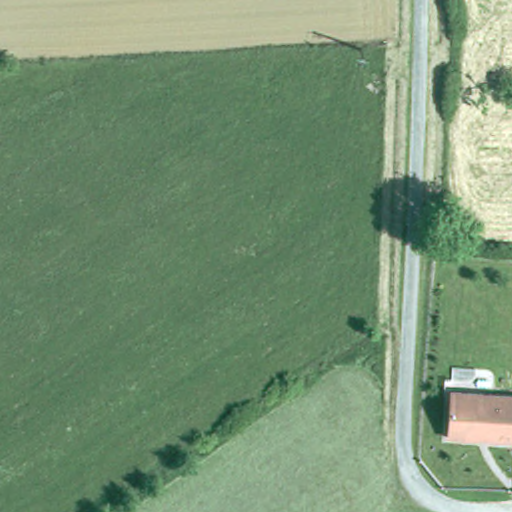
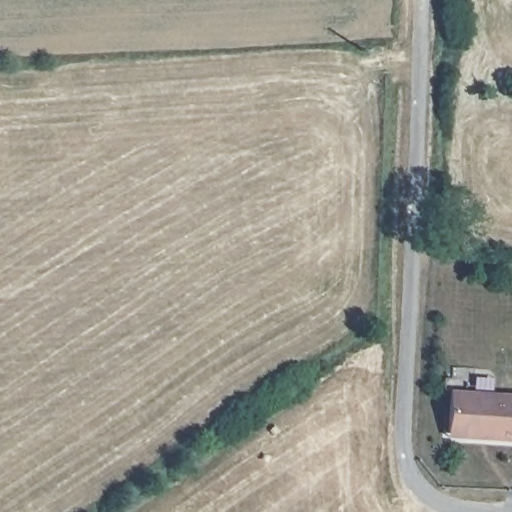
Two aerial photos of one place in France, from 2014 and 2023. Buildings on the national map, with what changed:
unchanged [(451,395),(512,398),(512,443),(488,442),(449,440),(450,434),(451,395)]

